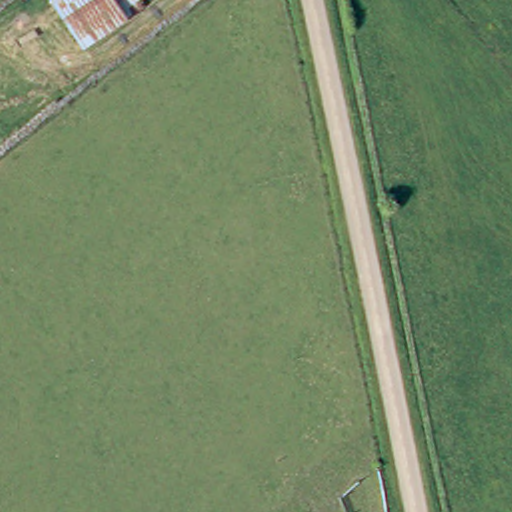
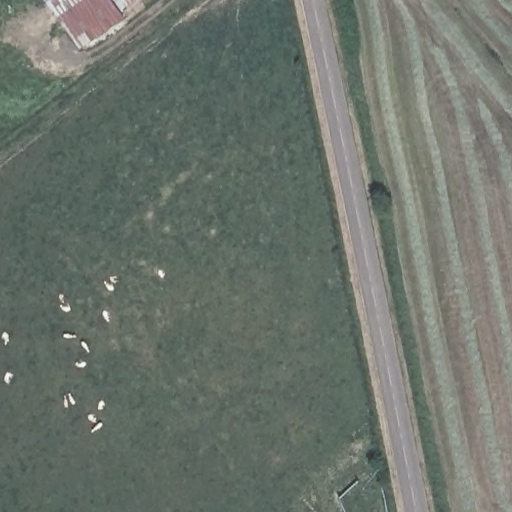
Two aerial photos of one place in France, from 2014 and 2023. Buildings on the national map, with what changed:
unchanged [(125,6),(127,15),(85,43),(56,0),(134,0),(125,6)]

